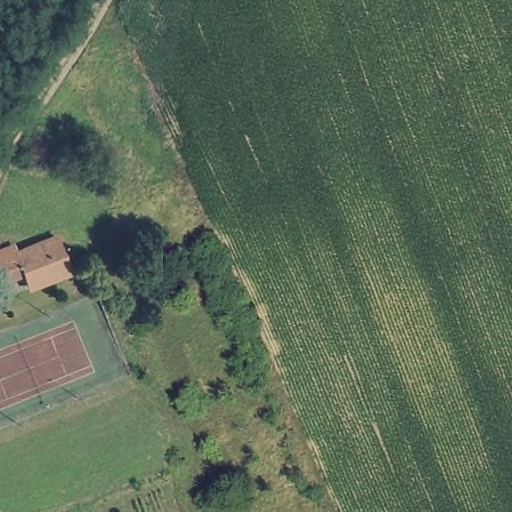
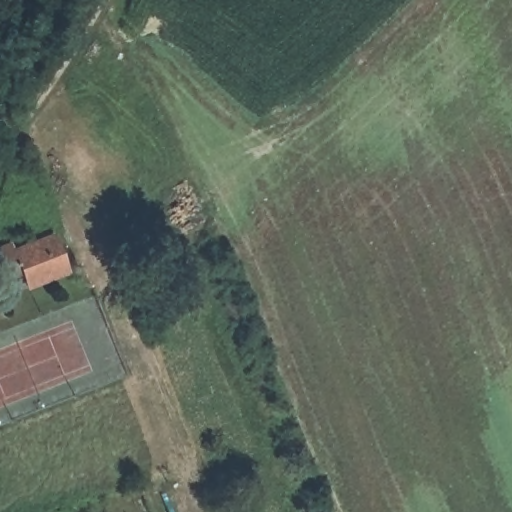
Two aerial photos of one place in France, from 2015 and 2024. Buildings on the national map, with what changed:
unchanged [(54,228),(71,273),(26,291),(18,270),(0,275),(0,244),(11,240),(14,245),(54,228)]

